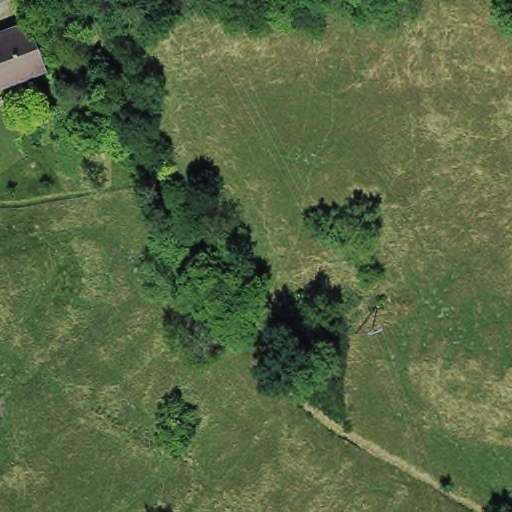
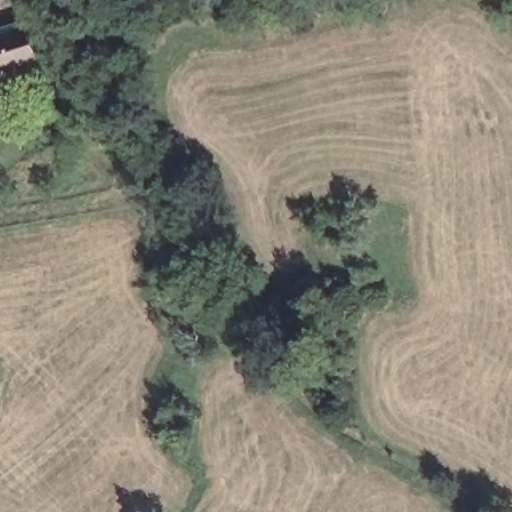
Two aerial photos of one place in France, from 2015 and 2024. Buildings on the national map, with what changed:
unchanged [(0,82),(0,23),(31,11),(50,64),(0,82)]

